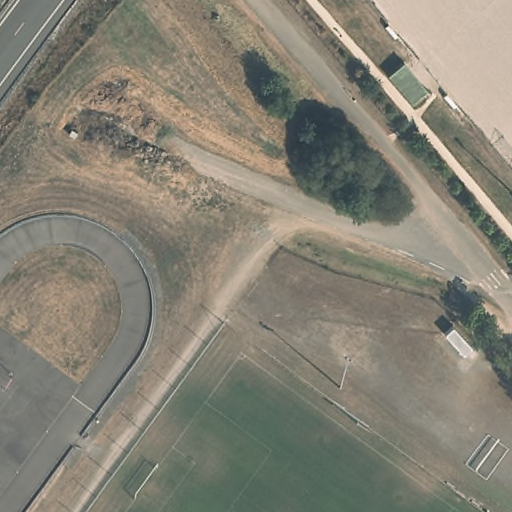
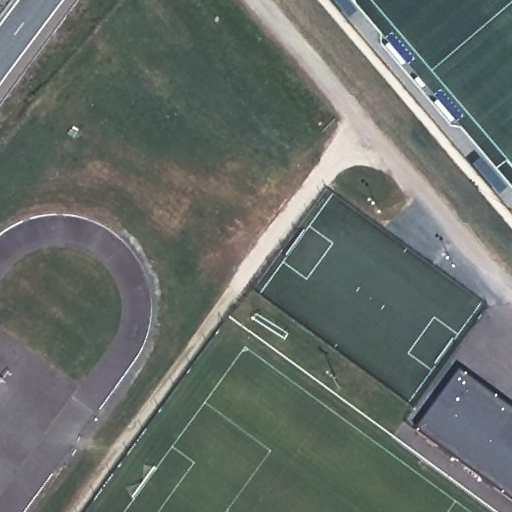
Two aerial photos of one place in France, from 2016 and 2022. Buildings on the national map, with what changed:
unchanged [(431,91),(414,105),(388,74),(404,60),(431,91)]
new [(512,408),(512,500),(419,431),(463,371),(512,408)]

